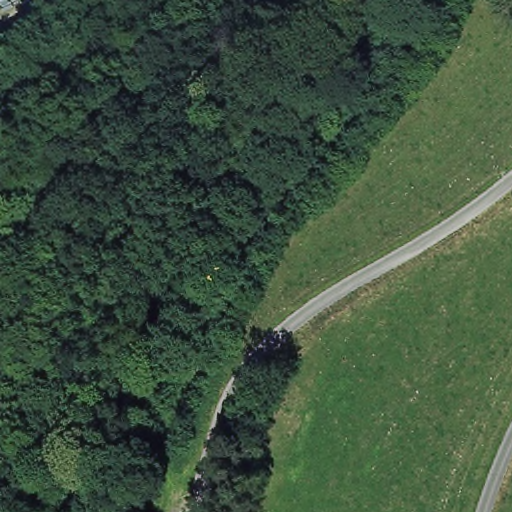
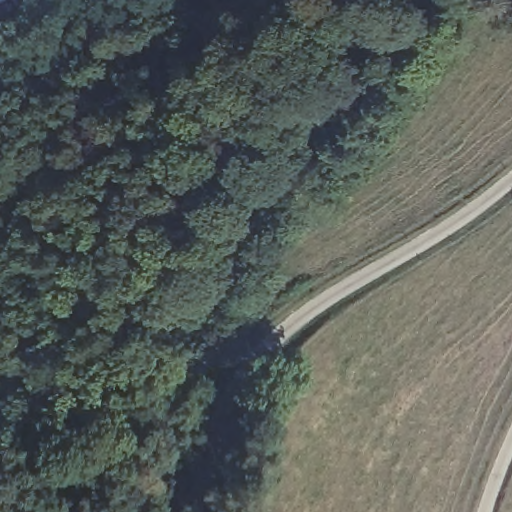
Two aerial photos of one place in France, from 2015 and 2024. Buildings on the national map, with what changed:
unchanged [(4,0),(0,2),(0,0),(4,0)]

